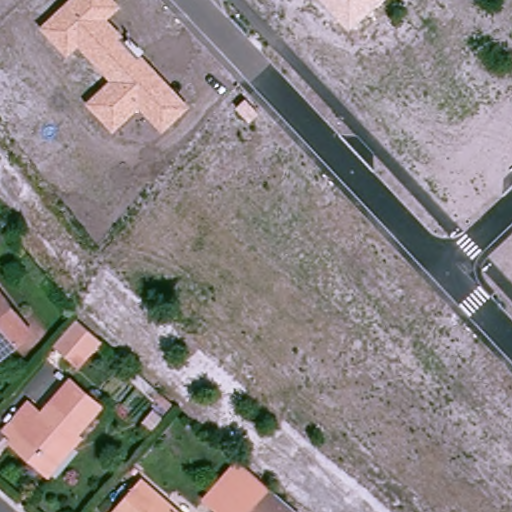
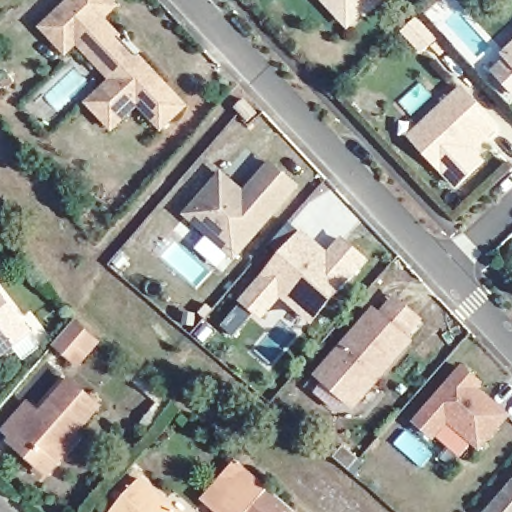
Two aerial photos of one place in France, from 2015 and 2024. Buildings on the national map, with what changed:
unchanged [(107,19),(191,106),(162,134),(140,109),(114,134),(85,102),(110,80),(78,46),(67,56),(39,26),(68,0),(115,0),(120,5),(107,19)]
unchanged [(321,0),(381,0),(348,30),(321,0)]
unchanged [(512,62),(505,55),(512,49),(512,62)]
new [(470,147),(444,171),(412,137),(463,89),(499,127),(486,139),(473,151),(470,147)]
new [(222,175),(240,190),(245,195),(271,165),(297,188),(235,258),(192,219),(187,216),(196,205),(222,175)]
new [(282,296),(262,319),(245,303),(304,234),(315,244),(325,253),(330,257),(343,241),(366,261),(340,290),(313,323),(282,296)]
unchanged [(36,328),(0,356),(0,281),(36,328)]
new [(378,319),(395,300),(420,322),(403,340),(407,344),(354,405),(321,377),(375,316),(378,319)]
unchanged [(100,340),(86,356),(77,347),(69,357),(55,344),(76,320),(100,340)]
new [(463,369),(481,384),(476,389),(509,417),(481,449),(449,422),(433,439),(416,424),(463,369)]
unchanged [(104,406),(56,463),(30,440),(25,445),(10,433),(34,405),(47,416),(76,383),(104,406)]
unchanged [(216,504),(249,466),(250,466),(270,484),(246,512),(225,512),(216,504)]
unchanged [(194,512),(123,512),(115,506),(145,470),(194,512)]
unchanged [(293,504),(287,512),(246,512),(270,484),(293,504)]
new [(512,512),(490,512),(502,498),(512,486),(512,512)]

